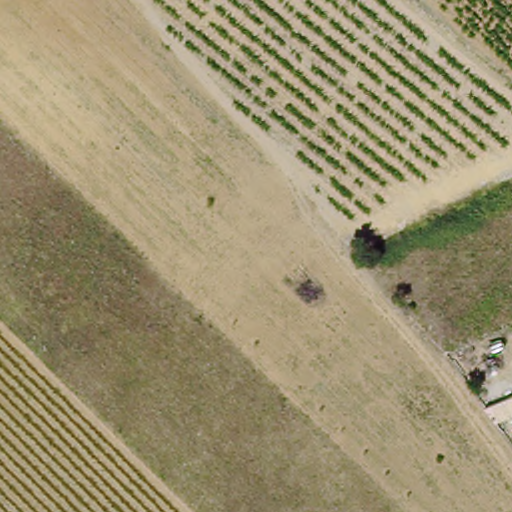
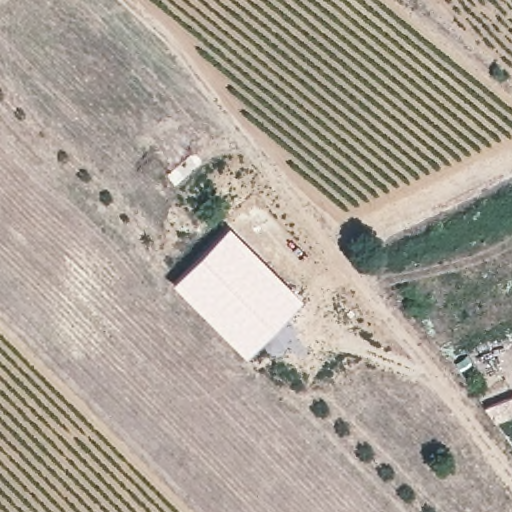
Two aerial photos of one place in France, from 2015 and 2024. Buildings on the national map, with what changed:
new [(228,225),(301,298),(245,356),(171,282),(228,225)]
unchanged [(512,399),(512,418),(495,425),(484,410),(512,399)]

